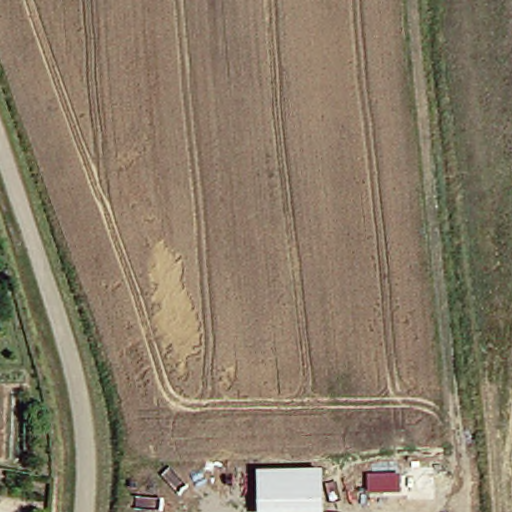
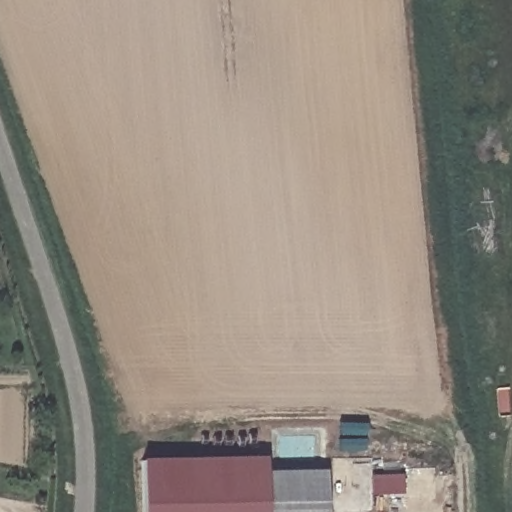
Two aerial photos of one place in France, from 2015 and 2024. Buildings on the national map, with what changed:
new [(259,471),(259,512),(141,512),(140,458),(262,457),(264,471),(259,471)]
new [(328,512),(259,512),(259,471),(328,470),(328,512)]

